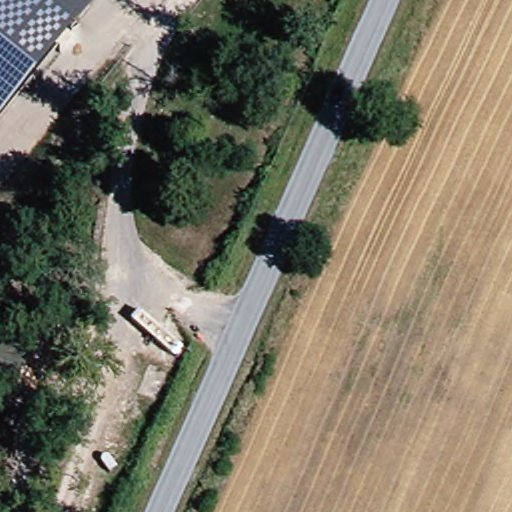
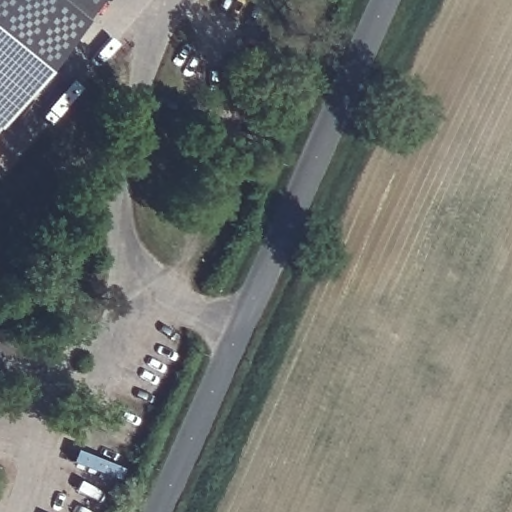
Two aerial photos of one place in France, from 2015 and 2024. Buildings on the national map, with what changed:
unchanged [(0,117),(0,0),(92,0),(0,117)]
unchanged [(0,341),(26,351),(15,382),(0,377),(0,341)]

